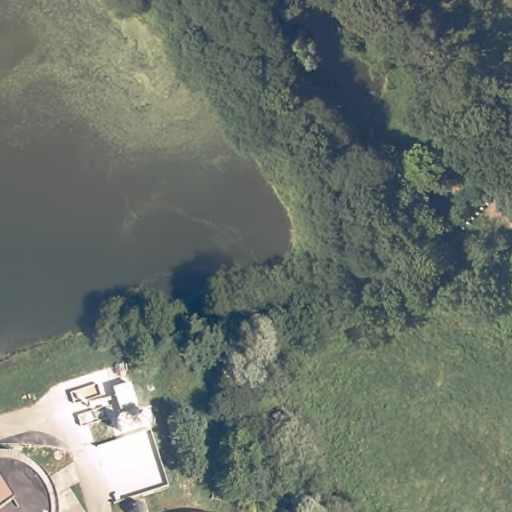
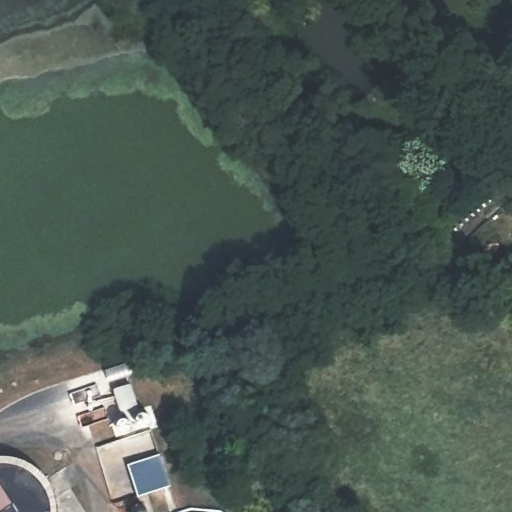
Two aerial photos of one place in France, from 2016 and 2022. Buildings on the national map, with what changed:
unchanged [(115,423),(109,409),(108,401),(124,395),(127,403),(133,417),(115,423)]
unchanged [(15,502),(2,512),(0,512),(0,479),(15,502)]

